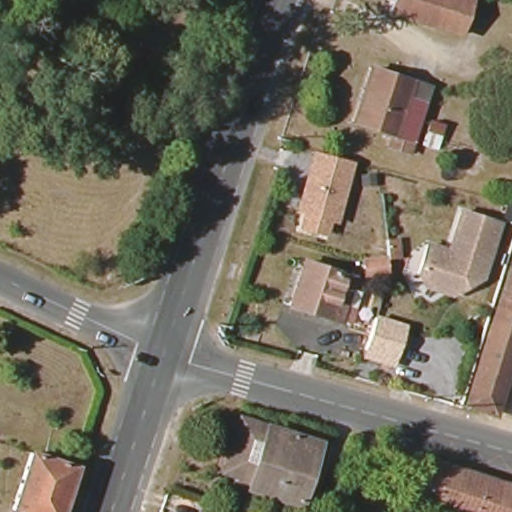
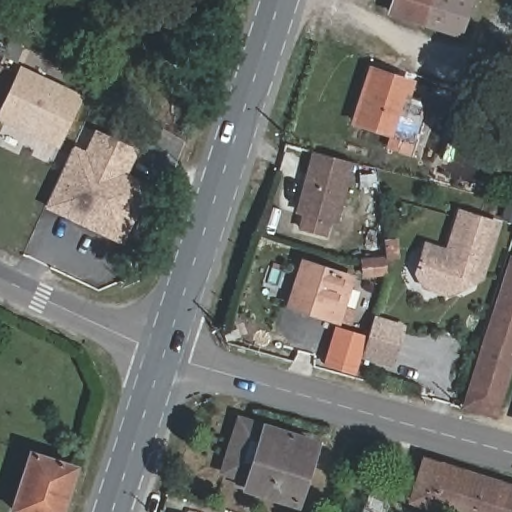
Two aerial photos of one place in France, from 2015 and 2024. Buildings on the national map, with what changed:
unchanged [(456,34),(386,11),(390,0),(467,0),(462,16),(456,34)]
new [(0,121),(0,109),(21,65),(84,94),(58,148),(0,121)]
unchanged [(395,149),(385,145),(389,134),(370,129),(350,121),(367,67),(388,75),(409,81),(410,79),(430,85),(423,105),(421,104),(405,152),(395,149)]
unchanged [(433,150),(418,145),(427,120),(442,125),(433,150)]
new [(127,174),(148,184),(122,245),(44,207),(74,144),(84,148),(95,129),(139,150),(127,174)]
unchanged [(330,222),(326,236),(297,227),(301,212),(295,211),(311,150),(353,161),(338,224),(330,222)]
unchanged [(483,277),(466,286),(451,295),(425,286),(418,272),(421,263),(427,244),(448,250),(461,211),(480,217),(500,224),(483,277)]
unchanged [(393,263),(371,265),(370,249),(392,246),(393,263)]
unchanged [(340,320),(310,311),(290,305),(304,261),(324,267),(354,277),(340,320)]
unchanged [(461,410),(507,262),(512,264),(512,355),(491,420),(461,410)]
unchanged [(392,366),(360,357),(374,315),(406,323),(392,366)]
demolished [(455,352),(443,395),(420,387),(432,345),(441,347),(455,352)]
unchanged [(306,510),(273,500),(275,492),(237,480),(252,430),(325,453),(306,510)]
unchanged [(61,512),(23,512),(14,509),(32,452),(76,465),(61,512)]
unchanged [(422,468),(432,471),(435,462),(485,478),(512,486),(512,512),(450,512),(412,500),(422,468)]

